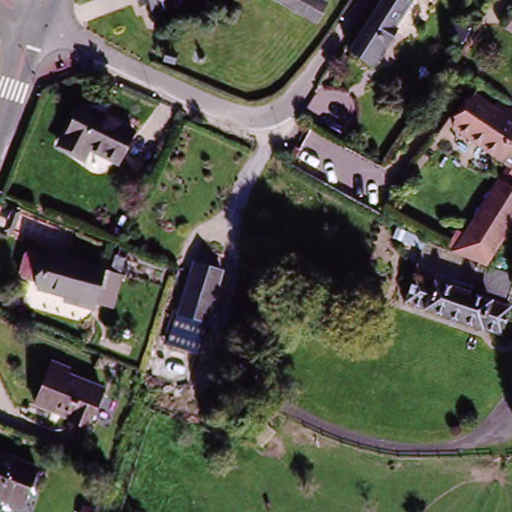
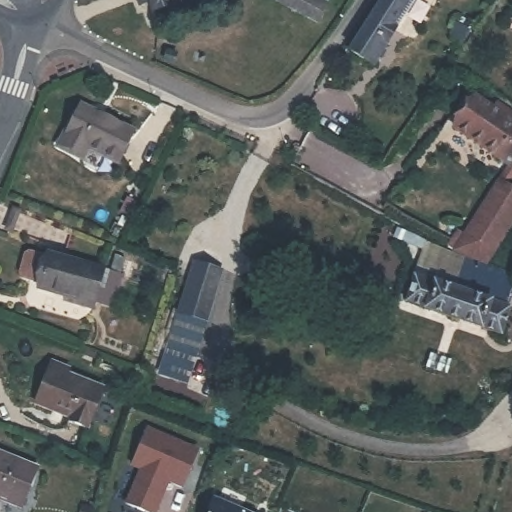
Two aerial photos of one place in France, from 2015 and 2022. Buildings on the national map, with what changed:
unchanged [(192,0),(164,8),(161,0),(192,0)]
unchanged [(324,0),(313,24),(269,4),(270,0),(324,0)]
unchanged [(394,37),(371,72),(346,56),(359,36),(376,13),(384,0),(412,0),(412,2),(396,26),(389,35),(394,37)]
unchanged [(478,29),(472,40),(471,39),(459,32),(466,22),(478,29)]
unchanged [(450,127),(460,113),(452,108),(466,91),(492,109),(497,102),(512,113),(512,174),(506,169),(450,127)]
unchanged [(78,104),(134,131),(119,159),(91,145),(83,162),(55,148),(78,104)]
unchanged [(512,174),(502,188),(512,195),(512,222),(491,254),(481,269),(463,264),(439,251),(450,232),(457,236),(496,183),(506,169),(512,174)]
unchanged [(113,296),(93,292),(73,290),(71,300),(36,292),(42,255),(98,265),(118,269),(113,296)]
unchanged [(479,298),(512,312),(512,313),(502,337),(411,303),(427,263),(484,283),(479,298)]
unchanged [(193,267),(221,277),(203,327),(174,317),(193,267)]
unchanged [(490,272),(512,280),(512,312),(479,298),(484,283),(490,272)]
unchanged [(50,362),(70,372),(68,377),(106,396),(88,433),(64,422),(68,417),(33,398),(50,362)]
new [(170,484),(158,512),(145,512),(128,505),(143,471),(134,467),(150,432),(176,445),(176,447),(196,457),(186,481),(183,489),(170,484)]
unchanged [(18,512),(10,512),(0,507),(0,460),(34,476),(18,512)]
new [(219,495),(259,512),(211,512),(219,495)]

